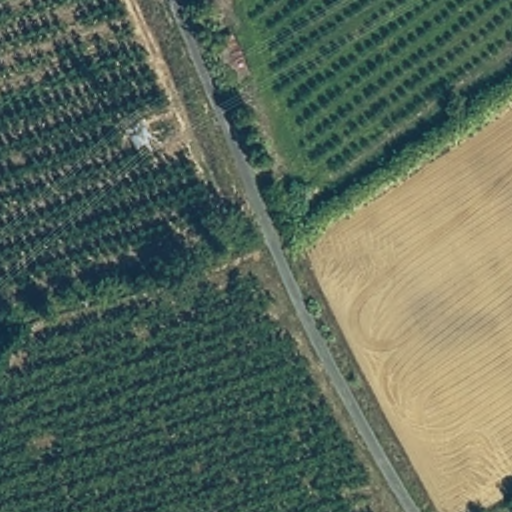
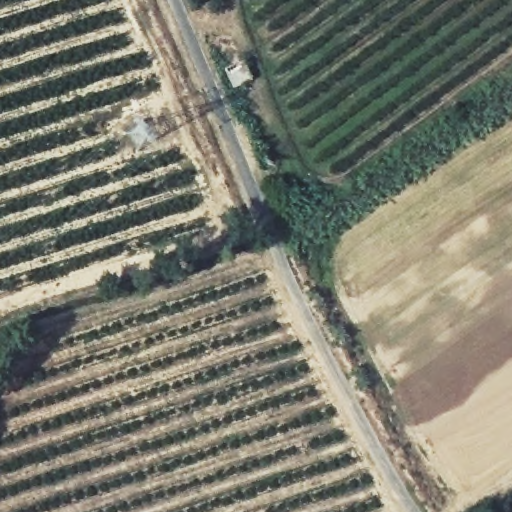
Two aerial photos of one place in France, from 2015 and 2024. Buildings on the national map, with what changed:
unchanged [(236,38),(258,86),(231,98),(208,49),(236,38)]

